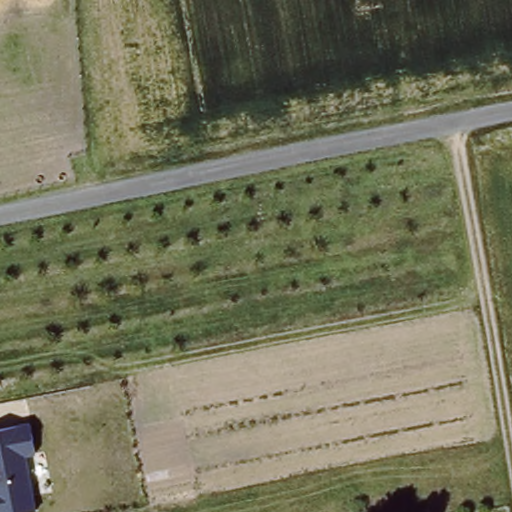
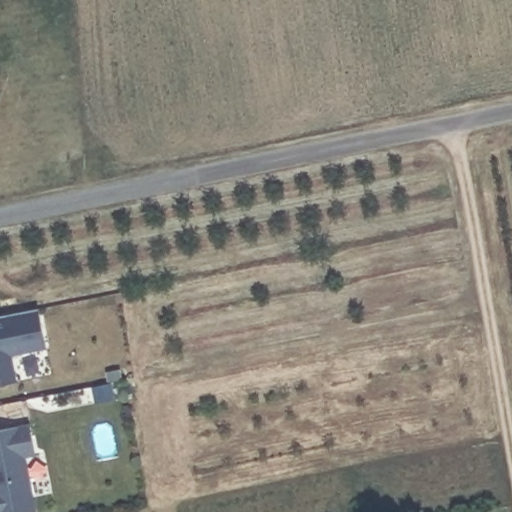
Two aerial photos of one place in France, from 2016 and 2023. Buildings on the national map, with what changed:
new [(45,349),(10,356),(16,383),(0,386),(0,317),(37,310),(45,349)]
unchanged [(37,455),(27,457),(37,509),(24,512),(0,512),(0,426),(29,420),(37,455)]

